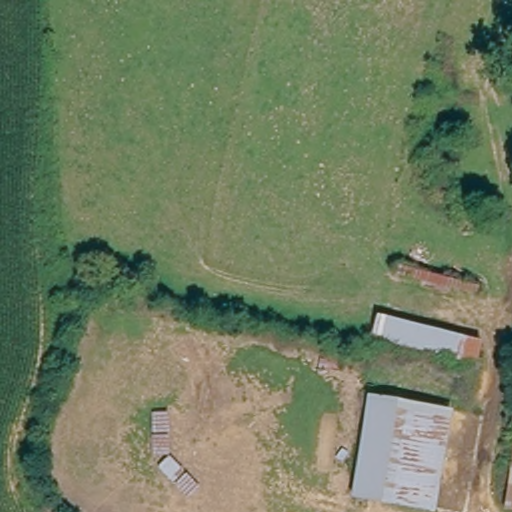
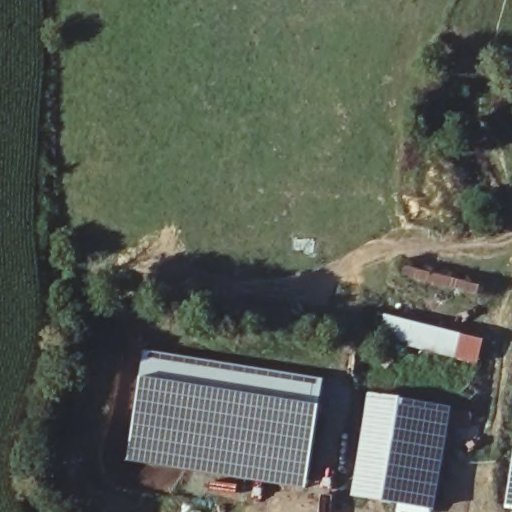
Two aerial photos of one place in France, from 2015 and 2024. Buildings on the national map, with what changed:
unchanged [(378,340),(381,329),(384,315),(491,343),(488,355),(484,367),(378,340)]
new [(142,350),(323,380),(306,490),(124,461),(142,350)]
unchanged [(440,510),(359,495),(377,397),(458,411),(440,510)]
unchanged [(506,511),(512,479),(512,512),(505,512),(506,511)]

